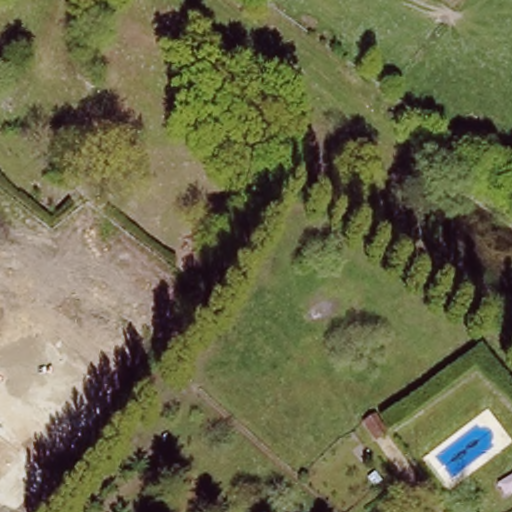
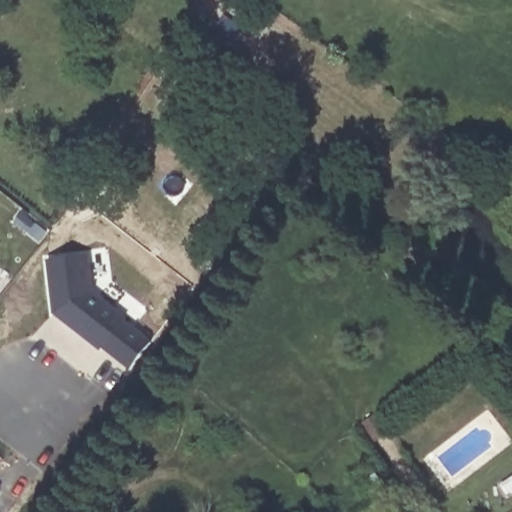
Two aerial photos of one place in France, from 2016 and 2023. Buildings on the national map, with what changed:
new [(88,255),(92,290),(126,317),(123,320),(153,344),(131,371),(102,347),(100,351),(51,313),(45,260),(88,255)]
unchanged [(365,425),(375,415),(386,428),(376,437),(365,425)]
new [(0,493),(0,488),(2,490),(0,493)]

